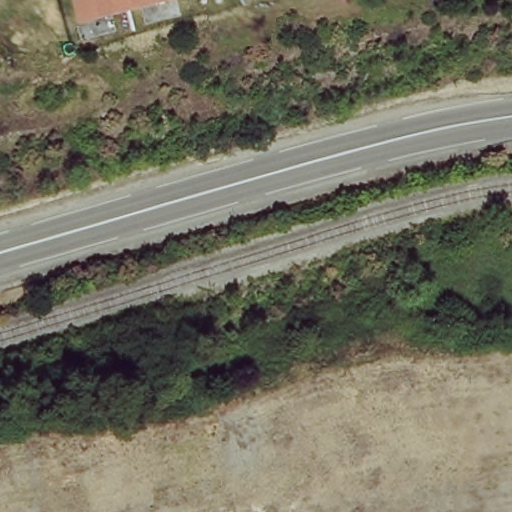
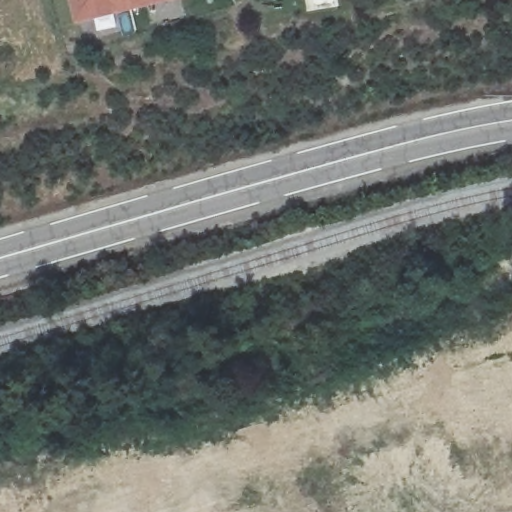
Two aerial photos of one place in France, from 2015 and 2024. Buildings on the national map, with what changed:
unchanged [(75,24),(69,0),(177,0),(75,24)]

